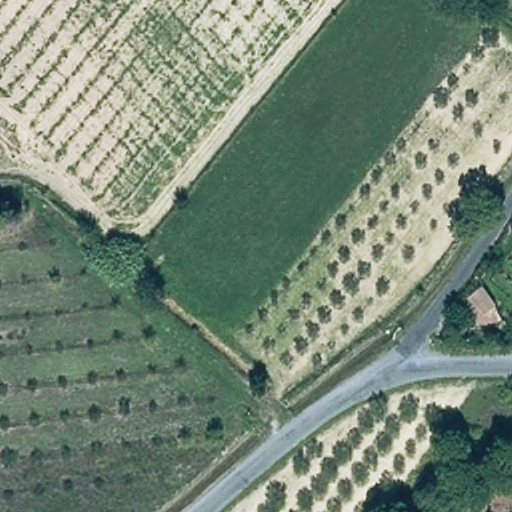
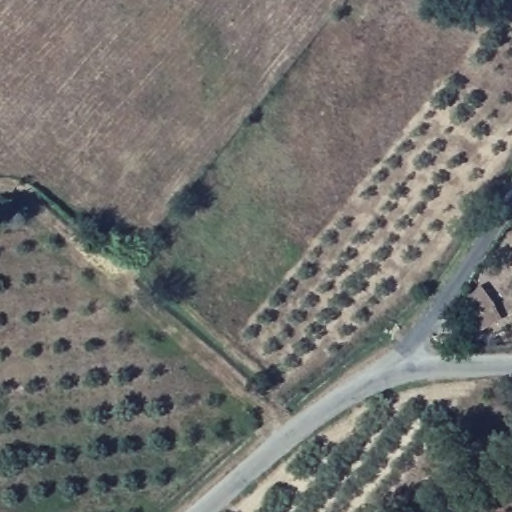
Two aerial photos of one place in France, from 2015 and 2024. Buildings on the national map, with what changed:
unchanged [(505,321),(477,337),(457,303),(484,286),(505,321)]

